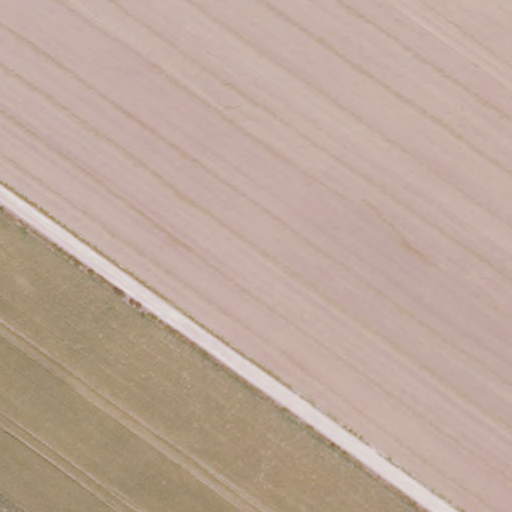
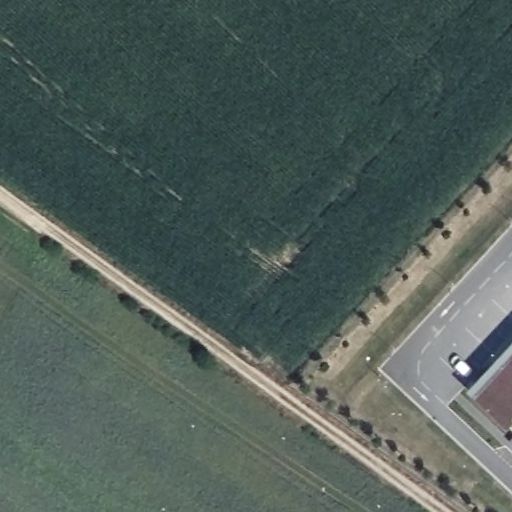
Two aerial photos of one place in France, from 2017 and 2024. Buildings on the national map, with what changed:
new [(505,432),(465,397),(512,345),(512,425),(505,432)]

